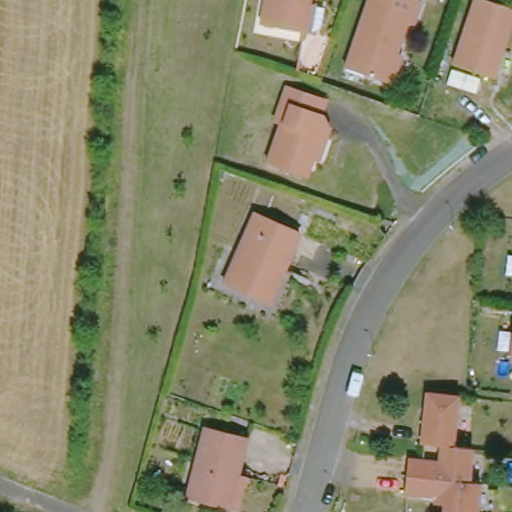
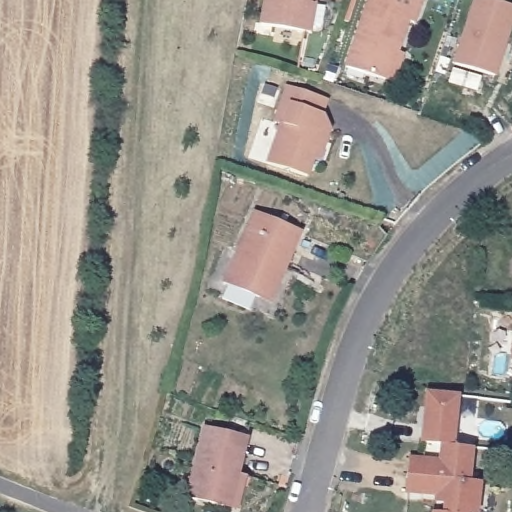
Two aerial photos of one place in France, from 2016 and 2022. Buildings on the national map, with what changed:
unchanged [(262,30),(264,17),(268,0),(317,0),(330,4),(325,23),(315,26),(311,27),(292,23),(289,35),(262,30)]
unchanged [(391,86),(386,84),(347,68),(371,0),(413,0),(422,4),(414,27),(410,26),(397,56),(402,58),(391,86)]
unchanged [(482,0),(491,0),(512,8),(512,43),(498,78),(458,66),(482,0)]
unchanged [(450,89),(456,70),(483,79),(478,98),(450,89)]
unchanged [(315,158),(308,179),(270,165),(281,130),(285,132),(289,122),(282,116),(290,89),(328,103),(322,118),(328,133),(319,159),(315,158)]
unchanged [(273,303),(263,297),(228,282),(262,215),(307,236),(289,272),(276,298),(273,303)]
unchanged [(411,491),(416,458),(447,463),(449,448),(427,444),(434,396),(464,400),(456,450),(476,453),(471,485),(483,487),(479,512),(448,512),(450,498),(411,491)]
unchanged [(235,509),(222,505),(189,496),(210,426),(251,438),(240,474),(246,476),(235,509)]

